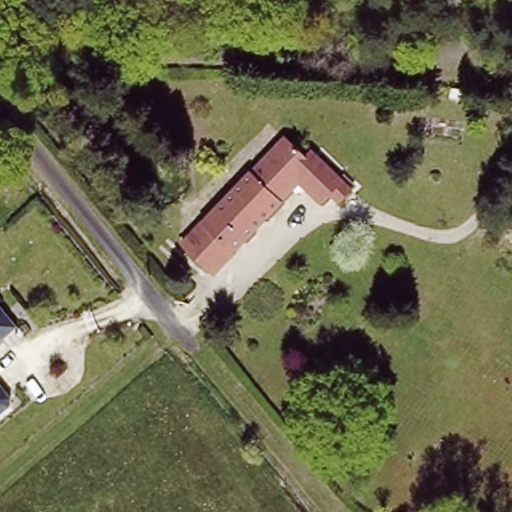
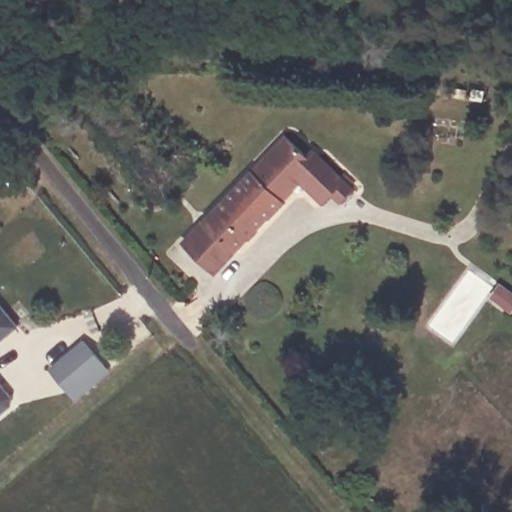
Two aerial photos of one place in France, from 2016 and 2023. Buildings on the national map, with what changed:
unchanged [(307,155),(311,150),(321,159),(353,187),(338,205),(333,201),(328,207),(299,180),(234,250),(202,219),(251,167),(258,174),(291,140),(307,155)]
unchanged [(234,250),(214,271),(182,240),(202,219),(234,250)]
unchanged [(16,324),(0,338),(0,305),(16,324)]
new [(81,340),(109,372),(74,402),(46,370),(81,340)]
unchanged [(13,395),(13,403),(0,415),(0,380),(13,395)]

